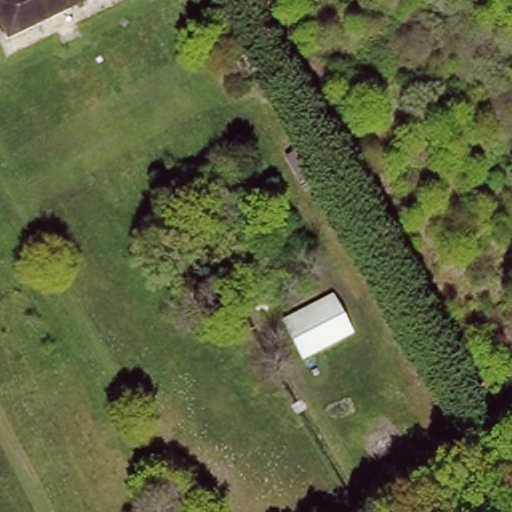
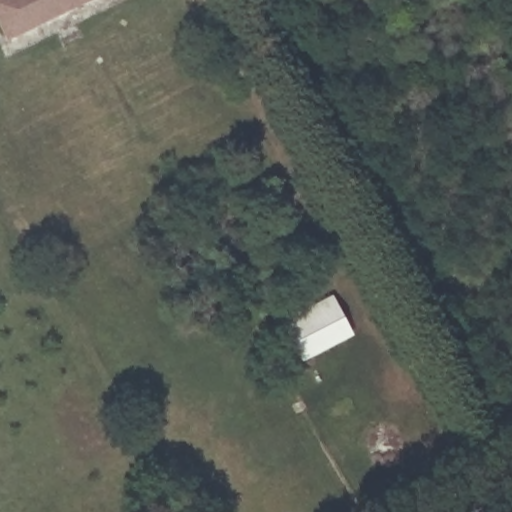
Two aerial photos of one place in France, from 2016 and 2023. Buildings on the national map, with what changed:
unchanged [(0,17),(0,0),(83,0),(11,37),(0,17)]
unchanged [(283,159),(306,146),(320,173),(299,188),(283,159)]
unchanged [(332,291),(352,332),(299,360),(277,318),(332,291)]

